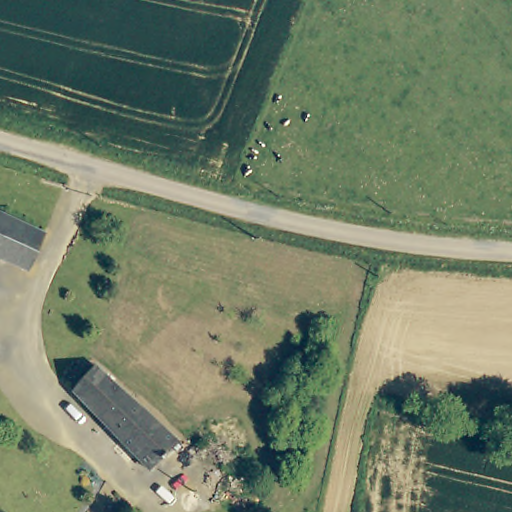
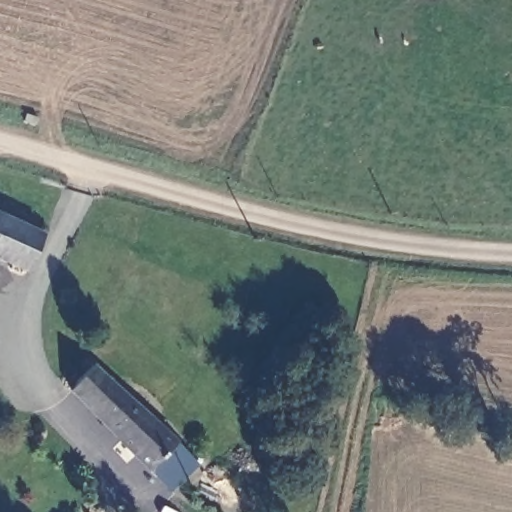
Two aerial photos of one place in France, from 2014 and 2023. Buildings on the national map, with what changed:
unchanged [(0,207),(47,229),(34,263),(0,249),(0,207)]
unchanged [(102,360),(110,363),(181,436),(148,462),(63,372),(84,352),(102,360)]

